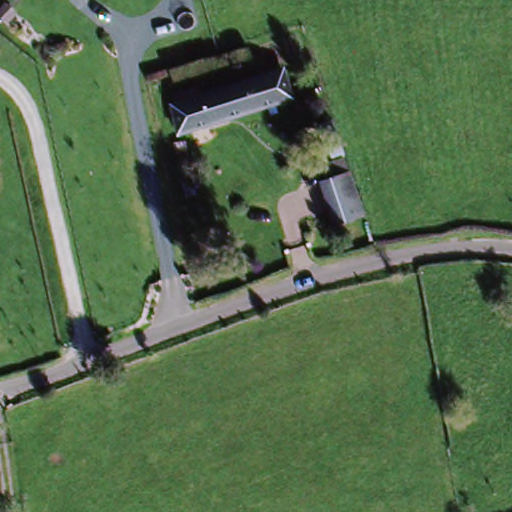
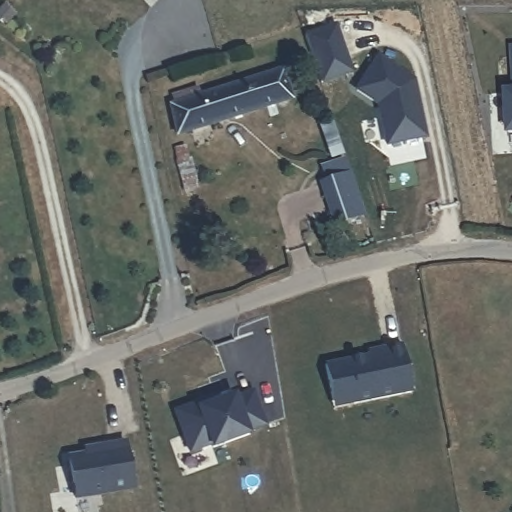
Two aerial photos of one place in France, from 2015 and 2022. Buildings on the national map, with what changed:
new [(15,14),(6,25),(0,19),(0,13),(6,6),(15,14)]
new [(342,24),(357,71),(326,81),(311,34),(342,24)]
new [(382,64),(417,88),(427,145),(388,152),(383,121),(386,120),(385,113),(360,95),(382,64)]
unchanged [(292,96),(172,130),(165,103),(175,101),(170,86),(195,79),(201,93),(285,69),(292,96)]
new [(512,99),(512,129),(509,99),(512,99)]
unchanged [(340,230),(327,187),(322,171),(347,164),(350,178),(363,224),(340,230)]
new [(369,356),(385,352),(403,348),(414,396),(355,409),(353,401),(334,406),(327,370),(370,361),(369,356)]
new [(219,399),(222,404),(237,397),(238,400),(255,392),(269,424),(252,432),(253,435),(218,451),(217,447),(197,456),(179,417),(200,408),(219,399)]
new [(84,453),(83,447),(126,441),(133,486),(73,497),(67,454),(84,453)]

